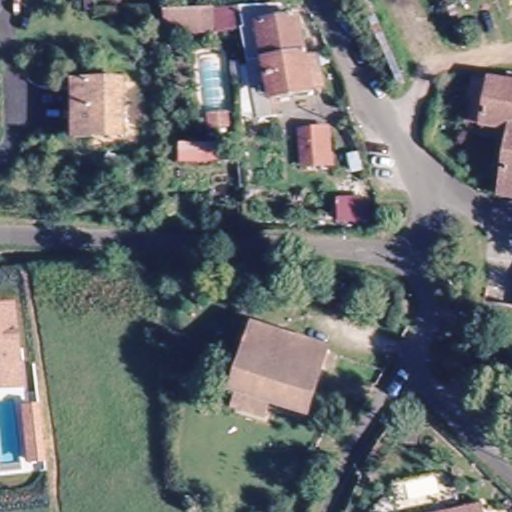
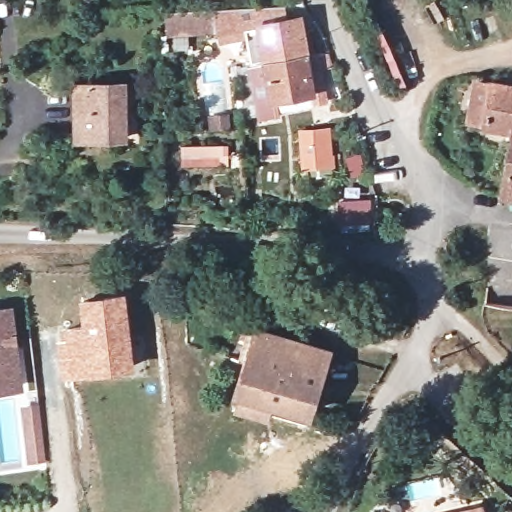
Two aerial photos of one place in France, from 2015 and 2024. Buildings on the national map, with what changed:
unchanged [(277,8),(276,25),(251,32),(212,36),(212,13),(277,8)]
unchanged [(212,13),(212,36),(164,39),(160,15),(212,13)]
unchanged [(267,105),(251,32),(276,25),(300,19),(314,96),(267,105)]
unchanged [(94,143),(74,143),(71,87),(120,86),(121,136),(121,142),(94,143)]
unchanged [(509,130),(508,137),(479,132),(487,88),(512,92),(512,131),(509,130)]
unchanged [(338,116),(354,115),(356,139),(339,140),(338,116)]
unchanged [(292,130),(318,128),(320,163),(294,164),(292,130)]
unchanged [(509,130),(512,131),(512,203),(497,201),(508,137),(509,130)]
unchanged [(212,147),(211,169),(174,169),(176,147),(212,147)]
unchanged [(339,203),(368,204),(368,226),(339,226),(339,203)]
new [(80,323),(78,295),(126,289),(135,366),(60,376),(56,328),(80,323)]
unchanged [(0,309),(7,308),(17,369),(21,394),(4,396),(0,397),(0,309)]
unchanged [(232,415),(235,401),(232,400),(250,335),(322,358),(305,421),(266,410),(262,424),(232,415)]
unchanged [(31,462),(27,432),(25,415),(40,413),(42,430),(45,460),(31,462)]
unchanged [(473,512),(467,512),(473,511),(473,512)]

